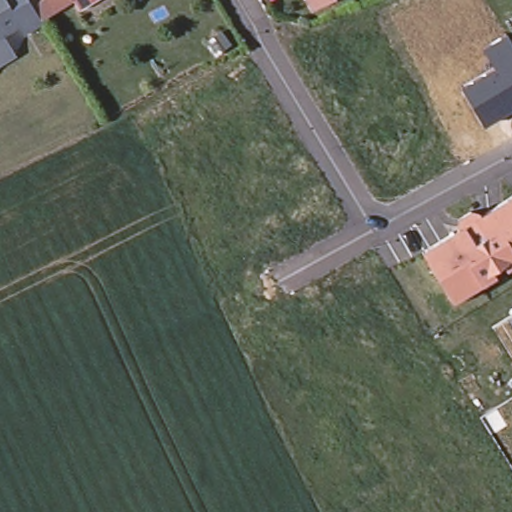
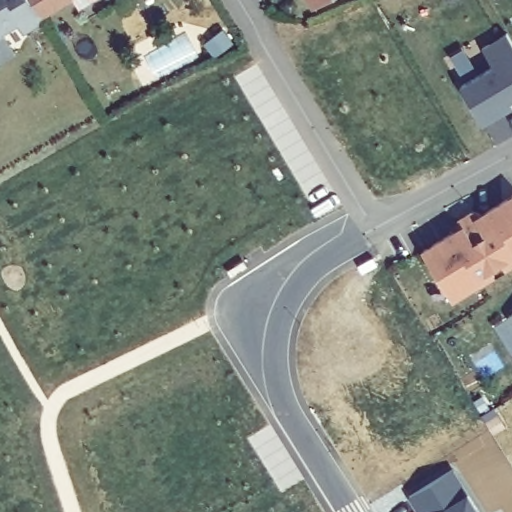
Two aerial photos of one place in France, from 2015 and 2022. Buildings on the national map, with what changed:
unchanged [(24,31),(19,22),(0,33),(0,0),(31,0),(43,20),(24,31)]
unchanged [(48,0),(69,0),(53,9),(48,0)]
unchanged [(314,0),(323,0),(316,4),(314,0)]
unchanged [(494,69),(483,51),(507,36),(512,44),(512,103),(511,104),(512,106),(512,111),(484,127),(461,89),(494,69)]
unchanged [(454,301),(422,247),(461,225),(457,219),(474,209),(479,216),(512,195),(512,265),(454,301)]
unchanged [(508,317),(512,314),(512,324),(508,317)]
new [(409,500),(453,472),(477,512),(417,512),(409,500)]

